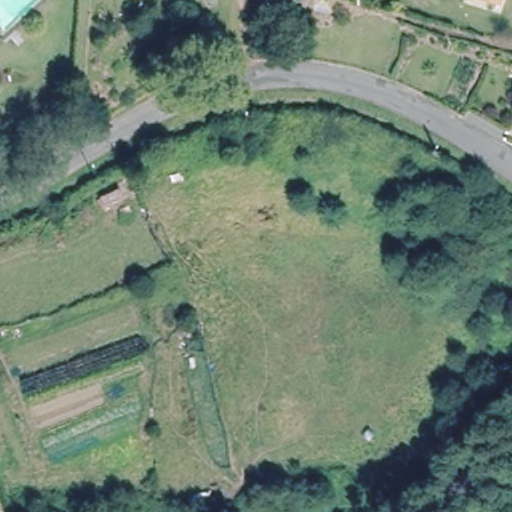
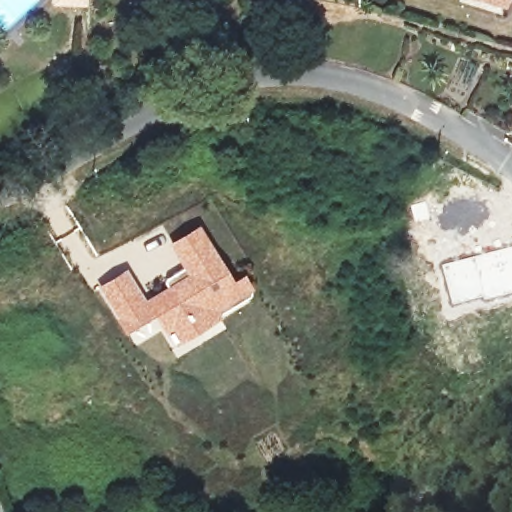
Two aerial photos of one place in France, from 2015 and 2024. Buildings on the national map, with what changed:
new [(51,5),(51,0),(86,0),(85,7),(51,5)]
new [(125,270),(144,298),(166,284),(164,280),(182,268),(167,244),(198,225),(232,278),(243,272),(253,291),(208,324),(173,346),(153,317),(126,332),(98,287),(125,270)]

